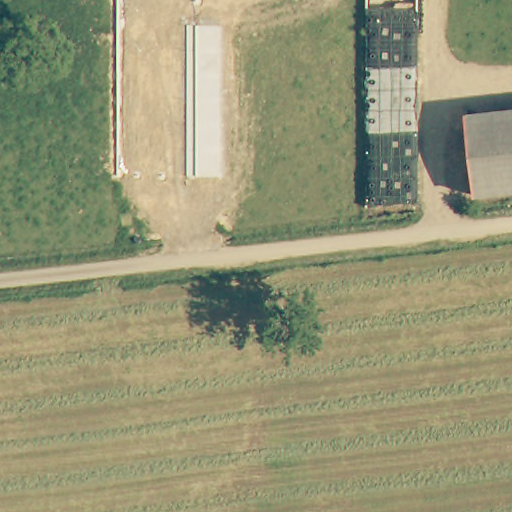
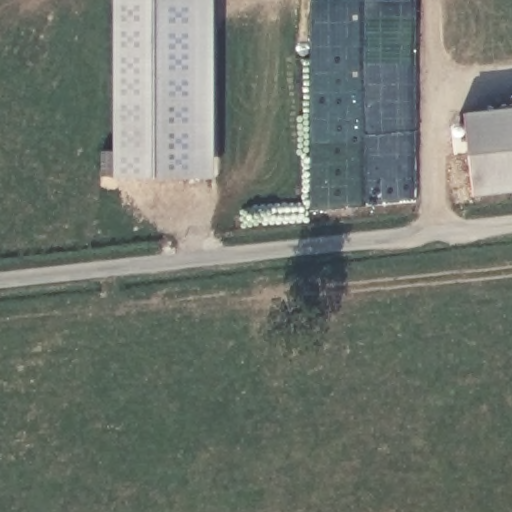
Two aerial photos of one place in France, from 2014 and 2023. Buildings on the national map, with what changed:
new [(215,178),(114,178),(114,0),(216,0),(215,178)]
unchanged [(460,113),(512,106),(512,186),(470,192),(460,113)]

